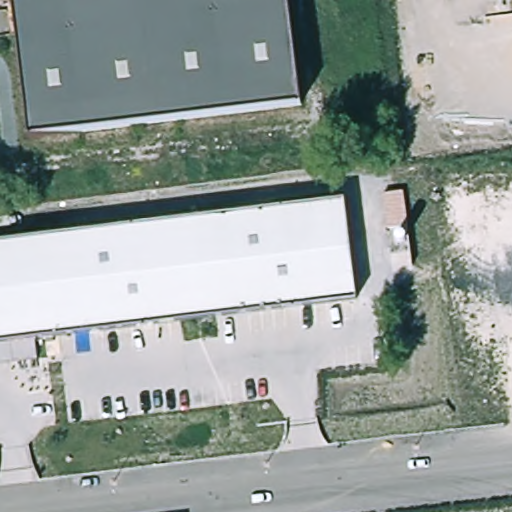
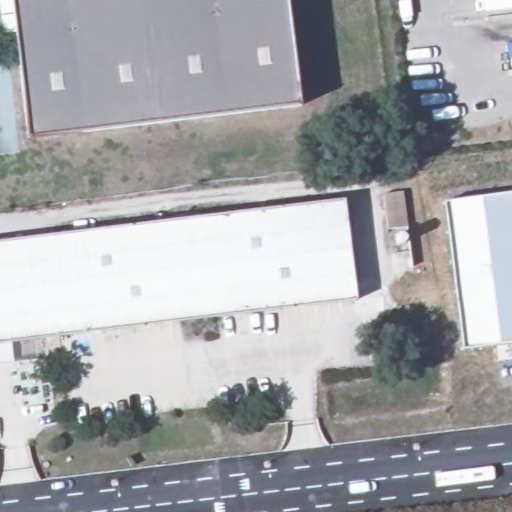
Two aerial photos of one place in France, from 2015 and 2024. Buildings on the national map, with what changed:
unchanged [(286,0),(299,107),(26,140),(9,0),(286,0)]
new [(463,351),(443,204),(512,194),(512,344),(463,351)]
unchanged [(345,199),(346,207),(357,300),(115,329),(104,331),(0,343),(0,241),(345,199)]

